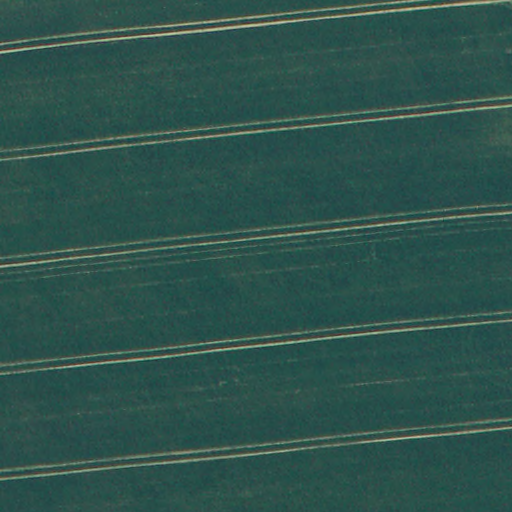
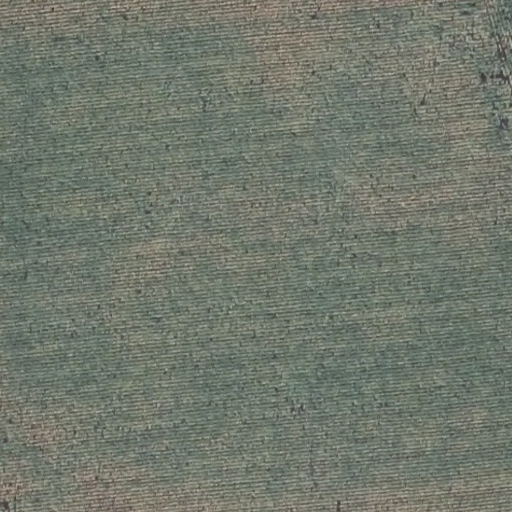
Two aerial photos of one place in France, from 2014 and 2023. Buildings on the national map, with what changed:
[]

